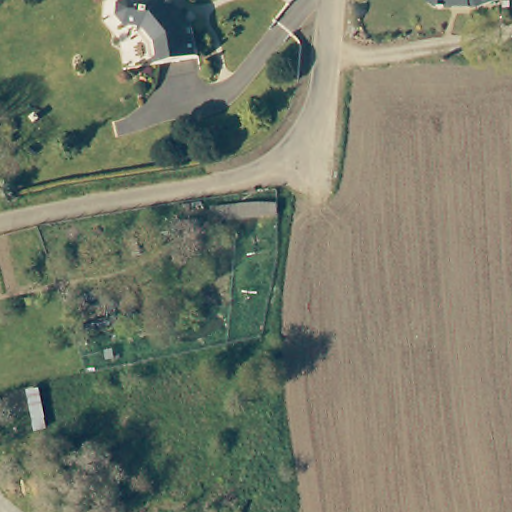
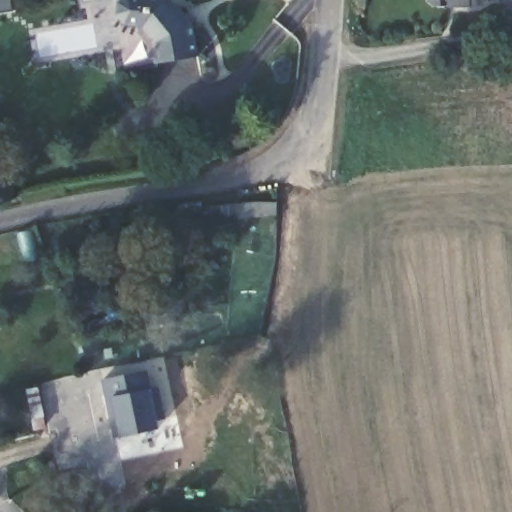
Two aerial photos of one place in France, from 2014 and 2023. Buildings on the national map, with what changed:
unchanged [(195,54),(154,62),(151,40),(134,28),(136,22),(123,22),(115,13),(115,3),(118,0),(172,0),(190,23),(195,54)]
unchanged [(415,1),(415,0),(493,0),(464,9),(421,7),(415,1)]
unchanged [(277,200),(279,216),(216,223),(215,207),(277,200)]
new [(147,369),(151,388),(160,429),(123,437),(114,437),(101,379),(147,369)]
unchanged [(23,388),(41,383),(47,423),(31,425),(23,388)]

